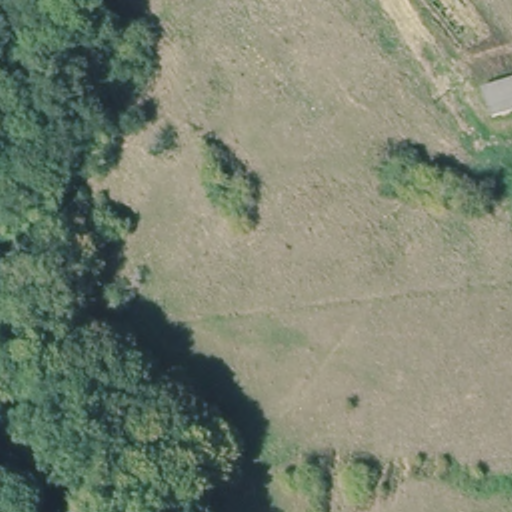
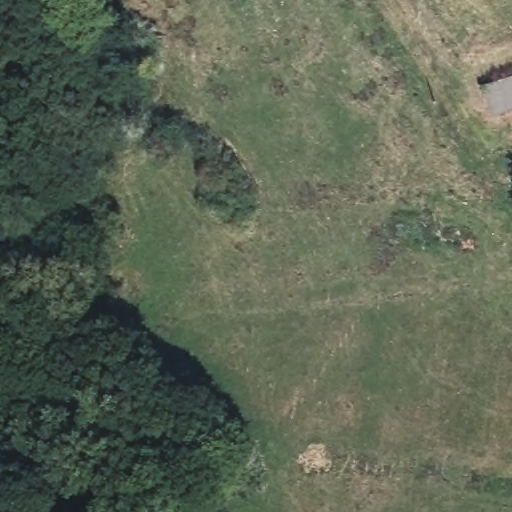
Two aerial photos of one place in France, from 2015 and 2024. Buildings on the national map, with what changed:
unchanged [(491,80),(512,72),(512,106),(503,109),(491,80)]

